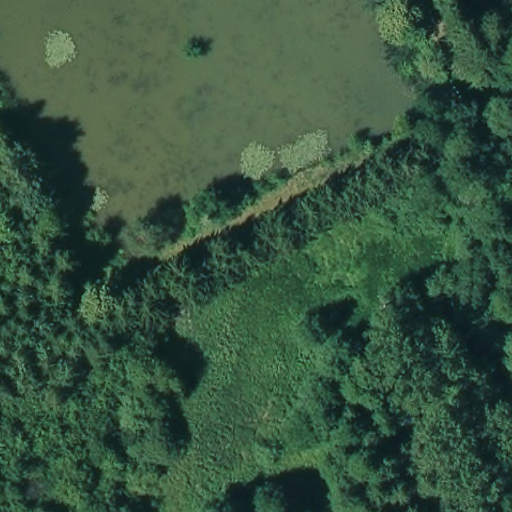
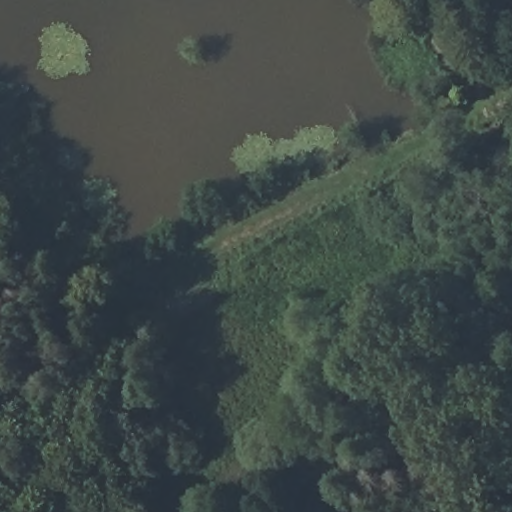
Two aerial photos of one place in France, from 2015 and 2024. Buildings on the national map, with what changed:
unchanged [(512,55),(512,79),(500,59),(501,59),(512,55)]

